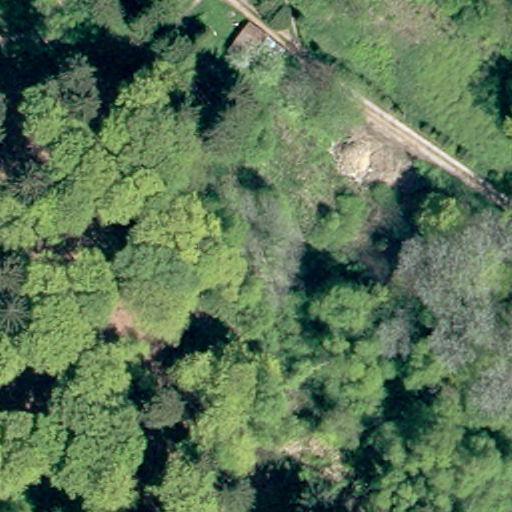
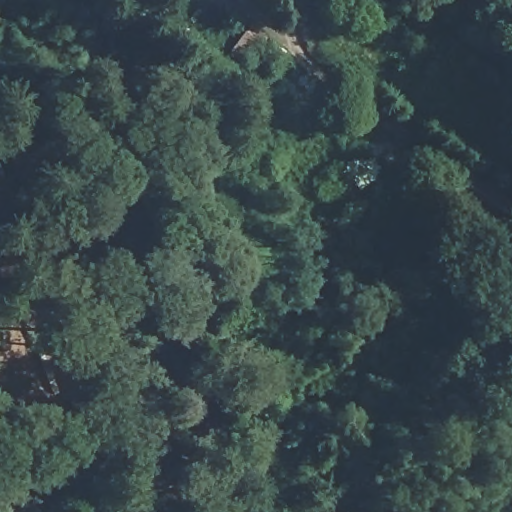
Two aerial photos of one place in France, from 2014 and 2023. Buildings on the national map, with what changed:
unchanged [(279,53),(267,68),(252,57),(245,63),(230,51),(248,28),(279,53)]

